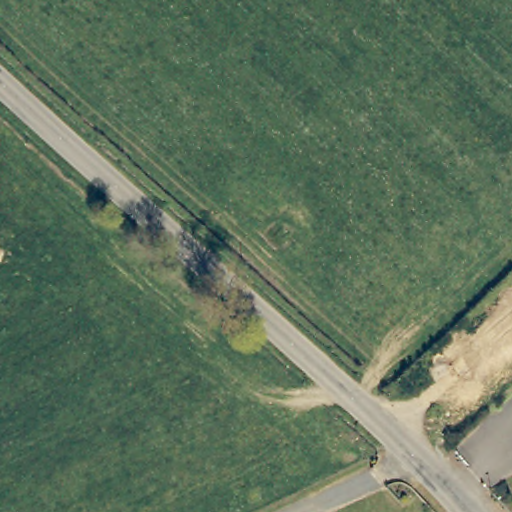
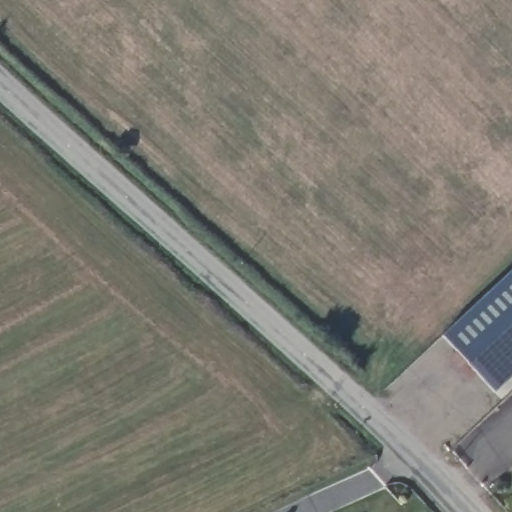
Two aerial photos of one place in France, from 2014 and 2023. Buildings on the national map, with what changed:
new [(496,393),(443,337),(512,272),(512,378),(496,393)]

